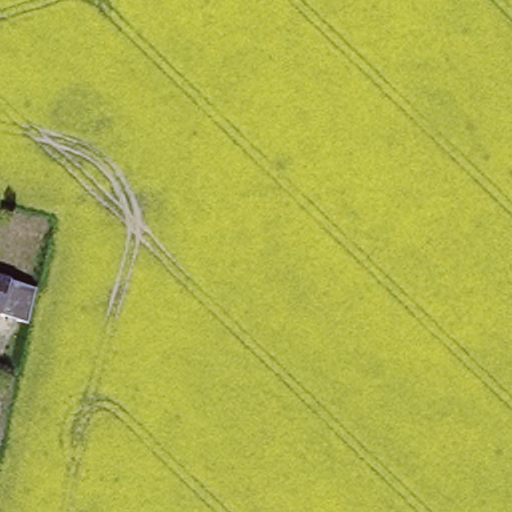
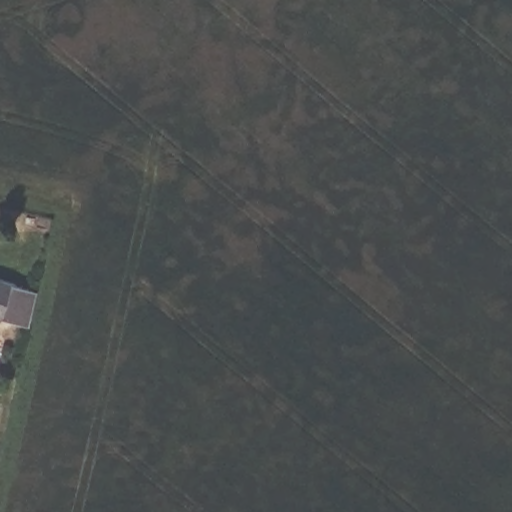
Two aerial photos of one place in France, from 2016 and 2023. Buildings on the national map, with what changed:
unchanged [(33,283),(22,318),(0,311),(0,273),(33,283)]

